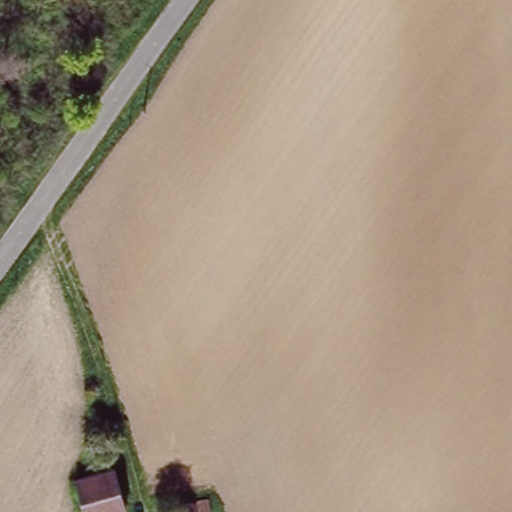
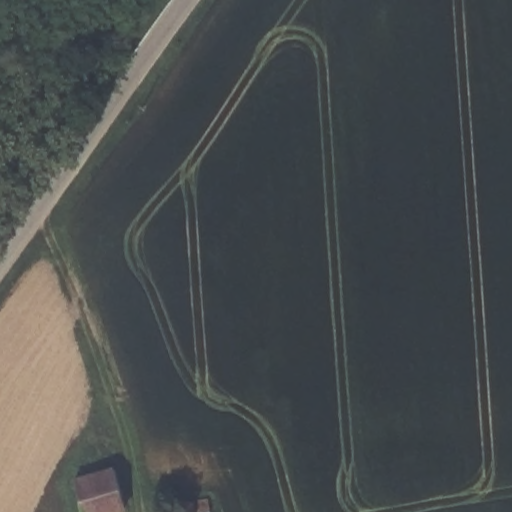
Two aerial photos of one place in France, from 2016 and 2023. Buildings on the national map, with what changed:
unchanged [(125,503),(90,512),(84,512),(74,478),(117,466),(125,503)]
unchanged [(209,510),(198,512),(184,512),(182,498),(207,494),(209,510)]

